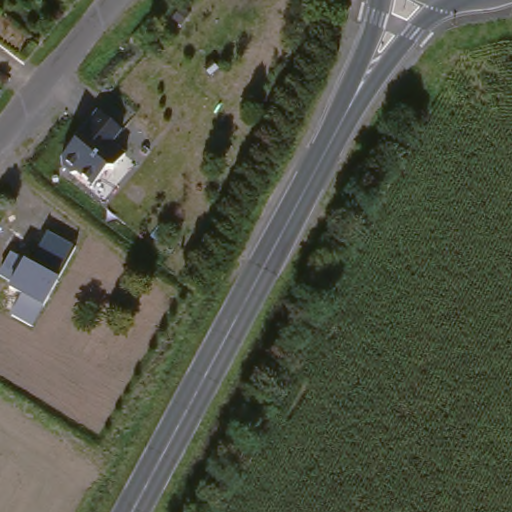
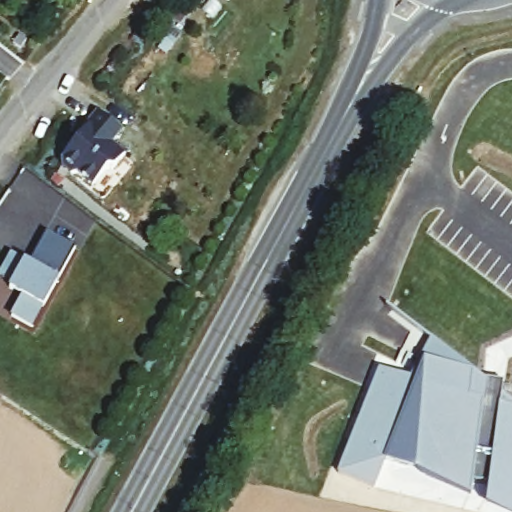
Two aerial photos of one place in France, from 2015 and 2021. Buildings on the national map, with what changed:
unchanged [(114,169),(106,169),(93,189),(71,176),(63,174),(62,158),(94,114),(121,132),(113,144),(126,153),(114,169)]
unchanged [(58,280),(43,309),(39,307),(32,327),(9,315),(20,295),(8,289),(11,284),(0,278),(0,273),(11,253),(24,260),(30,263),(47,232),(75,247),(58,280)]
new [(429,348),(488,396),(501,400),(498,406),(512,411),(512,489),(476,483),(383,460),(371,487),(337,473),(378,372),(413,385),(429,348)]

